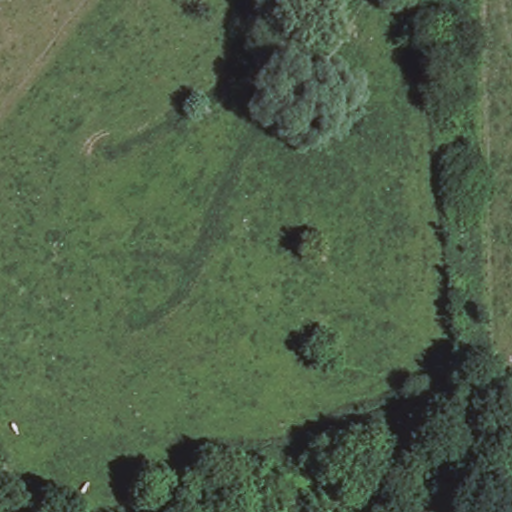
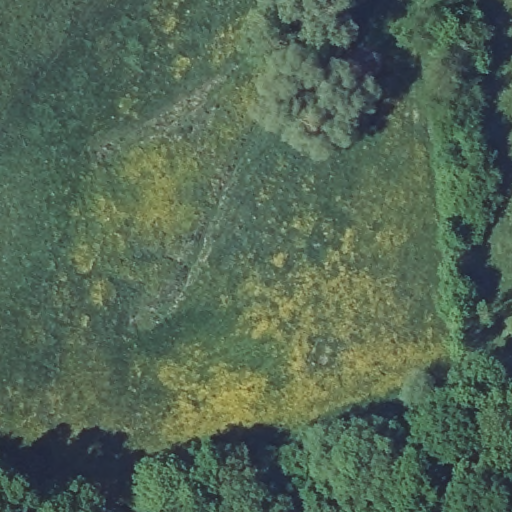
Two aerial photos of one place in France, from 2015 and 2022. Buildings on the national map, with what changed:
[]

